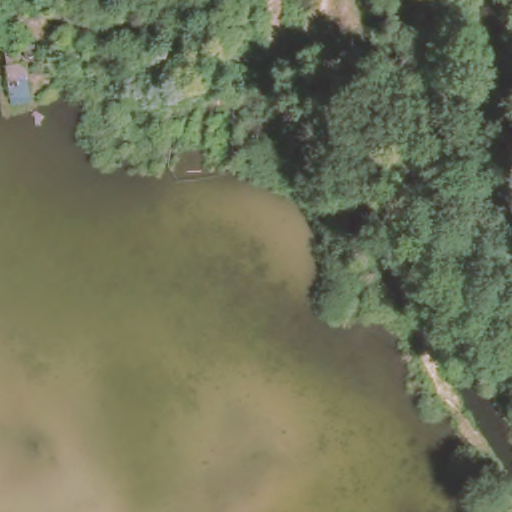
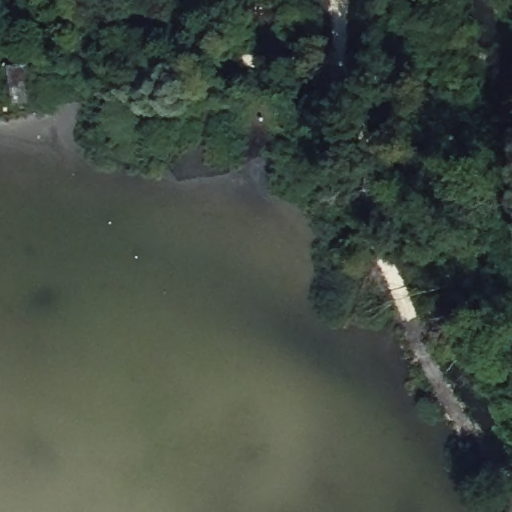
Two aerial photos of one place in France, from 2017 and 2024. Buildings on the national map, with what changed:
unchanged [(25,101),(8,102),(6,79),(23,78),(25,101)]

